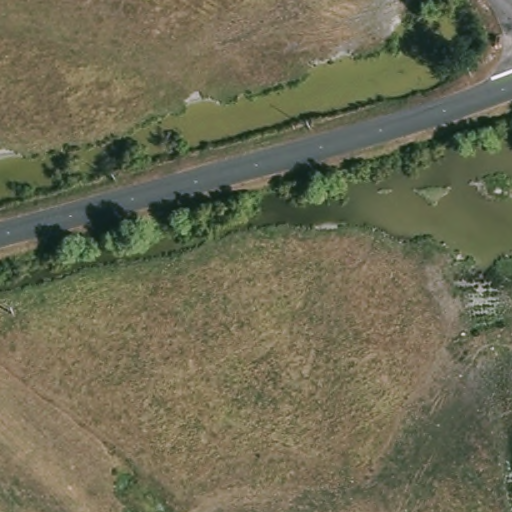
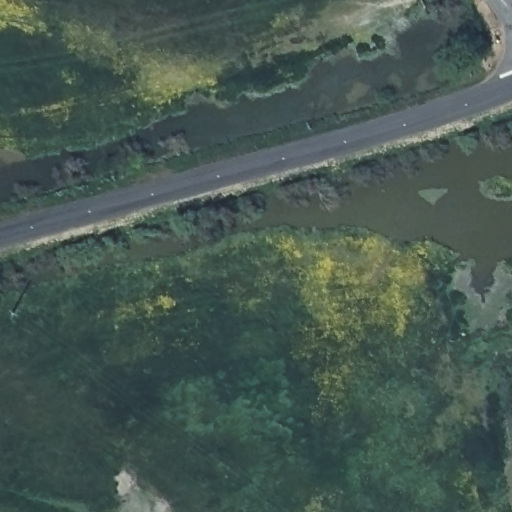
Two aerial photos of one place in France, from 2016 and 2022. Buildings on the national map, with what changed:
[]

